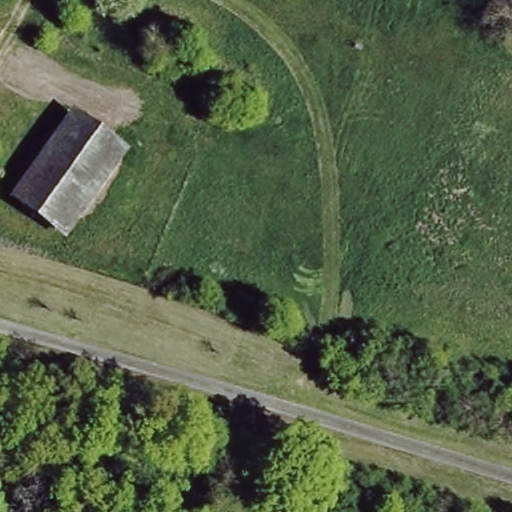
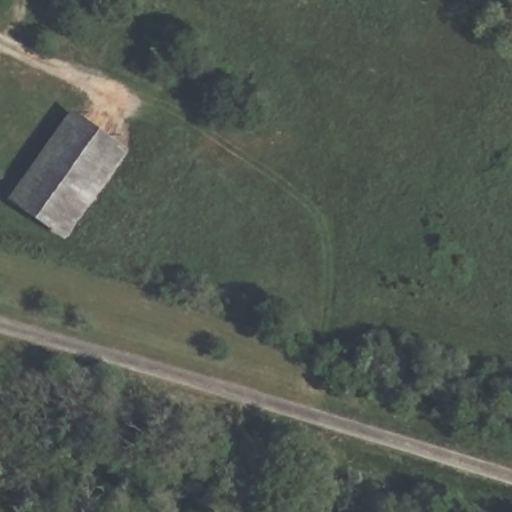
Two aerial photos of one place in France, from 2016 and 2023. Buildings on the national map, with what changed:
unchanged [(7,197),(71,107),(131,146),(65,236),(7,197)]

